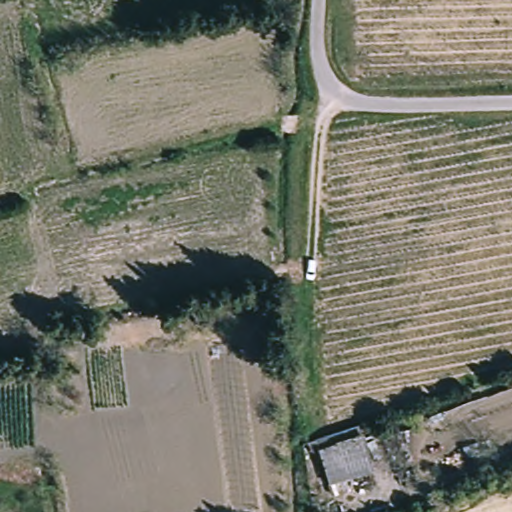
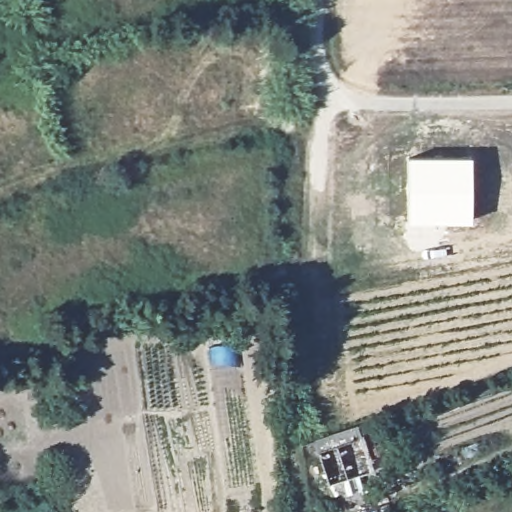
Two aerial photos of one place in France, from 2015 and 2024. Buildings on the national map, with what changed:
new [(471,223),(408,223),(408,157),(471,157),(471,223)]
unchanged [(360,434),(375,472),(327,490),(313,452),(360,434)]

